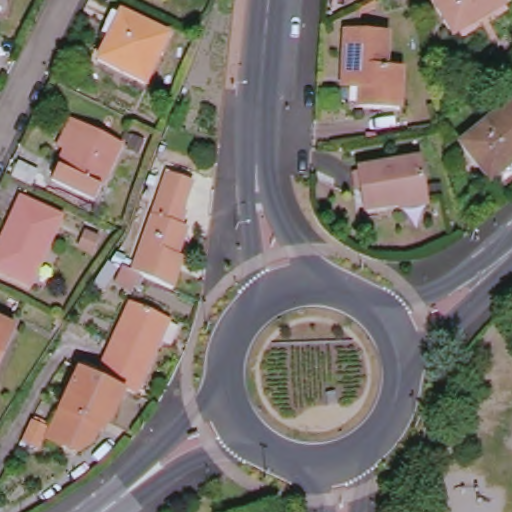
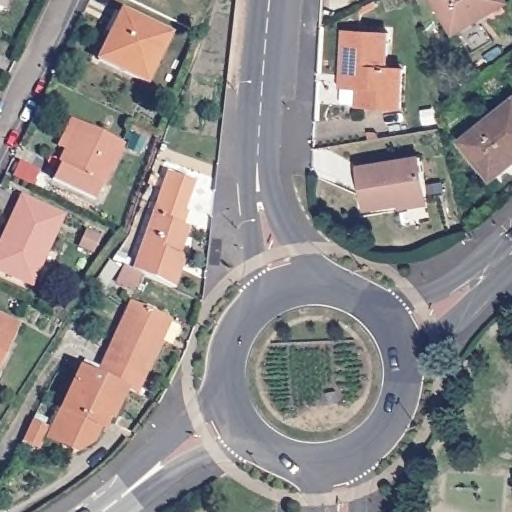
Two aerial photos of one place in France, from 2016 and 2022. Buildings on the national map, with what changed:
unchanged [(0,11),(0,0),(5,0),(2,12),(0,11)]
unchanged [(455,34),(434,0),(506,0),(508,3),(455,34)]
unchanged [(170,36),(146,83),(99,60),(122,13),(170,36)]
unchanged [(392,68),(407,71),(405,110),(365,107),(366,75),(349,73),(351,32),(394,35),(392,68)]
unchanged [(502,84),(490,93),(484,84),(497,74),(502,84)]
unchanged [(491,179),(462,143),(512,103),(512,162),(491,179)]
unchanged [(54,181),(67,152),(59,148),(72,119),(81,123),(123,144),(96,201),(54,181)]
unchanged [(427,201),(367,211),(360,168),(422,159),(427,201)]
unchanged [(39,172),(32,185),(14,176),(20,163),(39,172)]
unchanged [(129,276),(135,262),(142,266),(178,168),(201,177),(196,191),(198,192),(192,206),(197,208),(192,220),(195,222),(191,235),(194,238),(188,250),(192,252),(187,263),(190,264),(182,285),(150,269),(144,283),(129,276)]
unchanged [(32,285),(0,270),(0,248),(22,199),(62,218),(32,285)]
unchanged [(99,238),(92,252),(82,247),(87,234),(99,238)]
unchanged [(99,375),(132,303),(169,320),(137,393),(126,388),(99,375)]
unchanged [(0,362),(0,321),(16,329),(0,362)]
unchanged [(61,410),(81,367),(99,375),(126,388),(111,420),(102,416),(97,427),(99,429),(93,442),(78,452),(57,442),(48,438),(61,410)]

